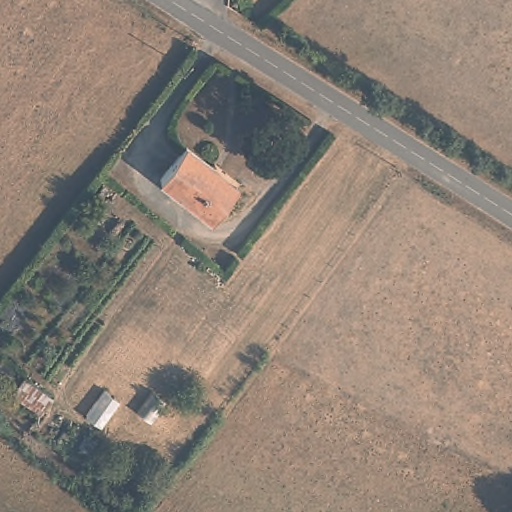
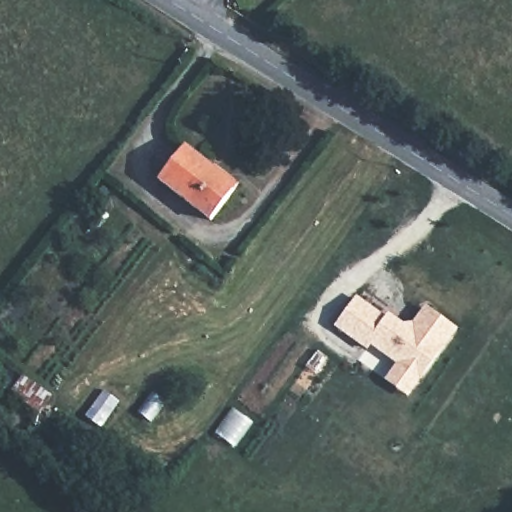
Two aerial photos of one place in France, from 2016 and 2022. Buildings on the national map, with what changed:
unchanged [(188,149),(237,187),(212,219),(162,181),(188,149)]
new [(400,363),(372,343),(368,348),(338,326),(358,298),(387,320),(390,315),(405,326),(415,325),(427,308),(457,330),(417,383),(409,395),(388,380),(397,368),(400,363)]
unchanged [(25,374),(53,395),(38,415),(10,392),(25,374)]

